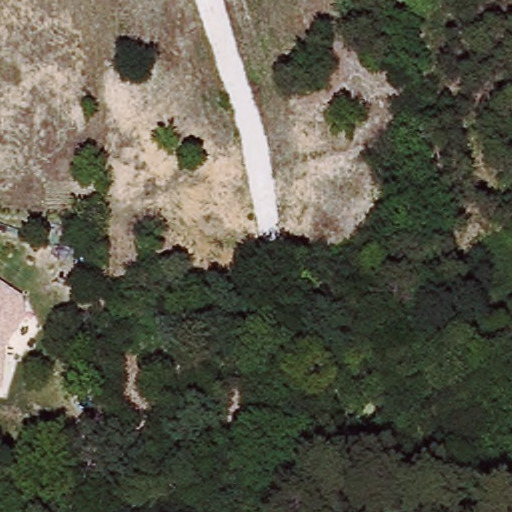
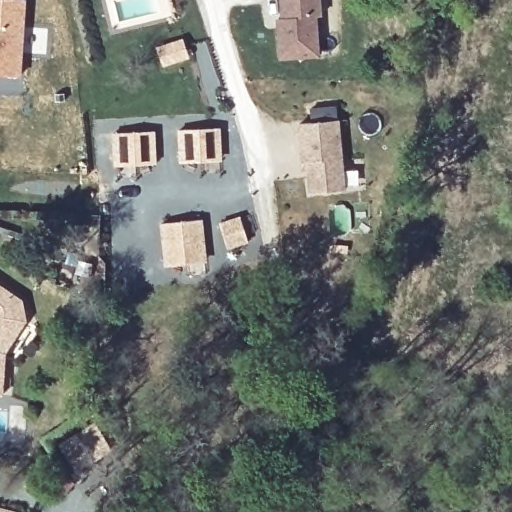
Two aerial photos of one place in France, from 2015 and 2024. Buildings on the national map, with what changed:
new [(21,78),(0,76),(0,0),(27,0),(21,78)]
new [(323,19),(318,19),(318,59),(278,59),(277,17),(281,17),(280,0),(321,0),(323,19)]
unchanged [(451,3),(432,2),(432,0),(450,0),(451,3)]
new [(346,191),(310,194),(308,176),(304,176),(298,123),(339,119),(346,191)]
new [(222,129),(222,161),(177,162),(176,131),(222,129)]
new [(156,132),(156,164),(112,165),(111,134),(156,132)]
new [(203,220),(207,261),(163,265),(159,224),(203,220)]
unchanged [(29,317),(8,351),(5,393),(0,392),(0,281),(24,297),(29,317)]
new [(93,421),(108,445),(75,465),(60,441),(93,421)]

